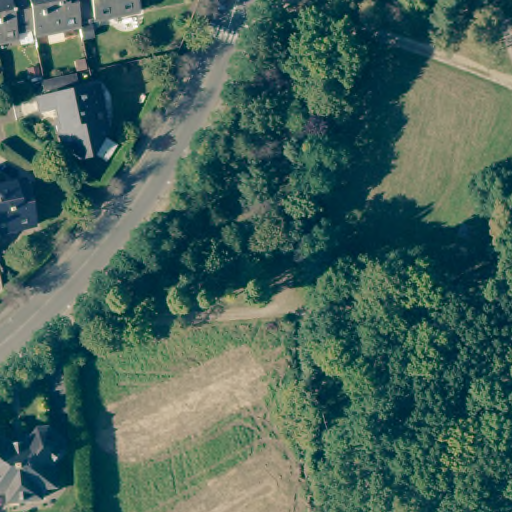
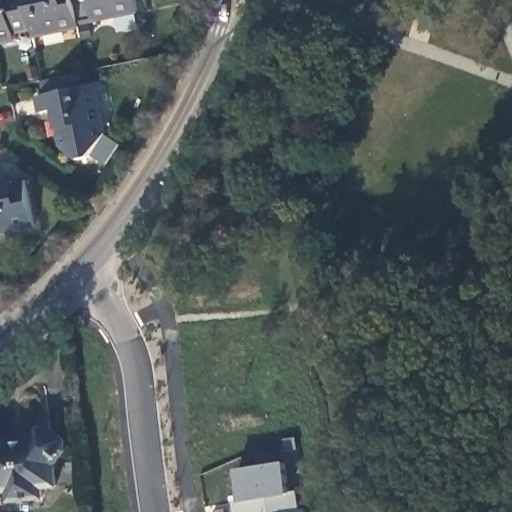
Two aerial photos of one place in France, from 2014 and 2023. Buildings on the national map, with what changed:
unchanged [(18,41),(0,44),(0,0),(27,0),(34,31),(16,34),(18,41)]
unchanged [(80,25),(81,29),(35,38),(34,31),(27,0),(76,0),(80,24),(80,25)]
unchanged [(94,21),(80,24),(76,0),(135,0),(138,12),(94,21)]
unchanged [(105,125),(88,151),(76,154),(63,144),(61,134),(55,106),(41,109),(38,94),(96,83),(105,125)]
unchanged [(35,226),(0,233),(0,188),(26,183),(35,226)]
unchanged [(39,491),(6,494),(6,484),(0,484),(0,430),(8,437),(24,436),(35,423),(46,423),(60,434),(61,444),(50,459),(51,480),(38,481),(39,491)]
new [(261,500),(245,501),(242,471),(287,466),(291,494),(298,494),(300,511),(307,510),(307,512),(262,512),(261,500)]

